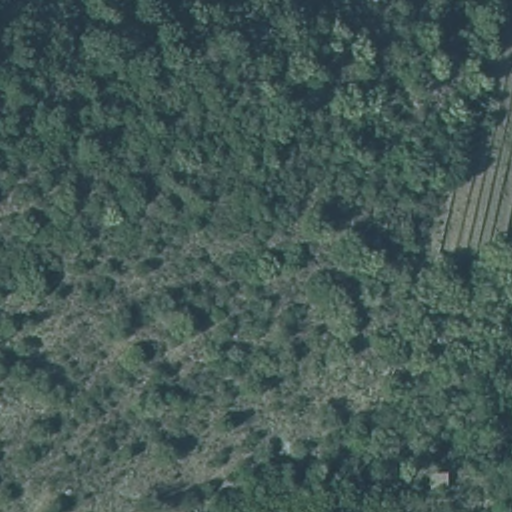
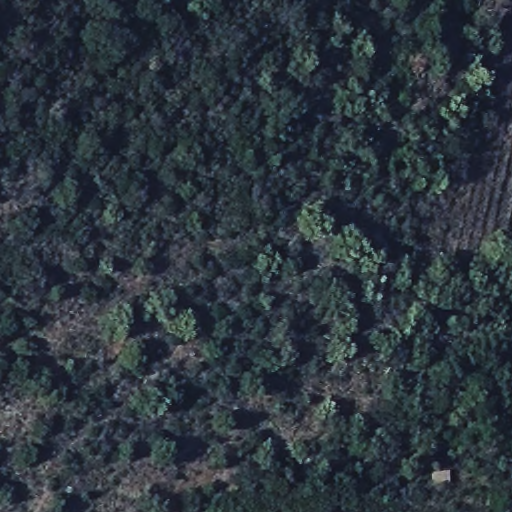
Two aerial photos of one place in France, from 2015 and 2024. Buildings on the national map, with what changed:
unchanged [(456,490),(435,489),(437,471),(457,472),(456,490)]

